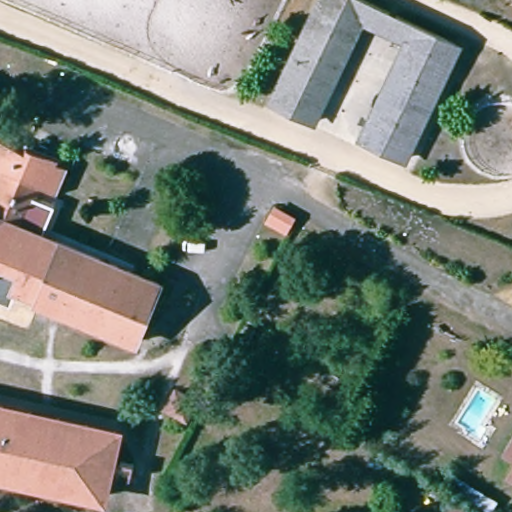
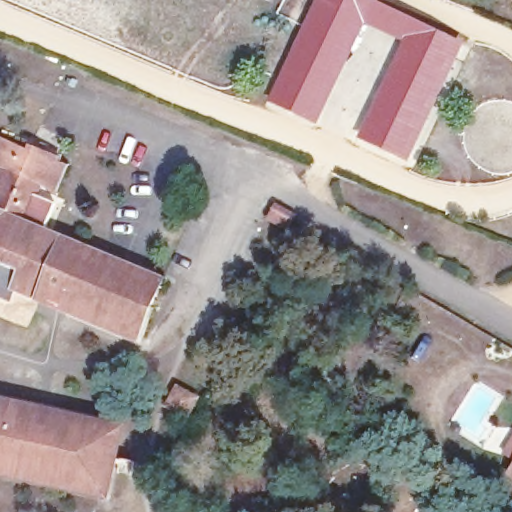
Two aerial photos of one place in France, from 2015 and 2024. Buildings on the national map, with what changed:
unchanged [(342,0),(371,15),(317,111),(314,116),(278,95),(332,0),(342,0)]
unchanged [(454,60),(420,42),(371,15),(342,0),(382,0),(463,42),(454,60)]
unchanged [(420,42),(454,60),(406,147),(401,155),(367,137),(369,132),(420,42)]
unchanged [(151,281),(125,337),(5,282),(0,295),(0,128),(63,156),(50,185),(35,180),(18,220),(96,256),(125,269),(151,281)]
unchanged [(0,466),(0,401),(42,410),(38,425),(128,443),(118,483),(116,492),(68,481),(0,466)]
unchanged [(132,427),(128,443),(38,425),(42,410),(132,427)]
unchanged [(512,443),(512,446),(510,446),(512,443)]
unchanged [(512,460),(512,470),(507,467),(512,460)]

